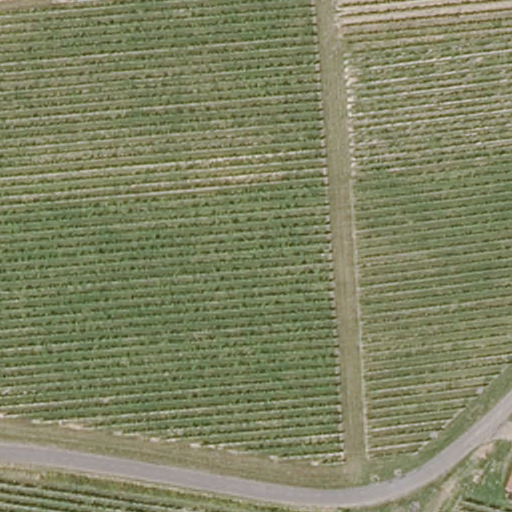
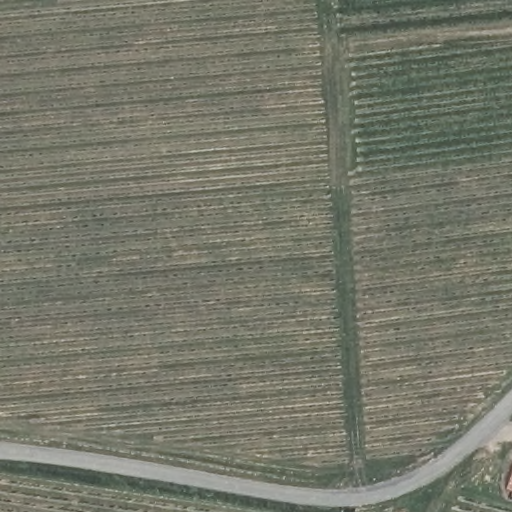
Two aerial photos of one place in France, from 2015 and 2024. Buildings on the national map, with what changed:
unchanged [(512,473),(512,493),(505,491),(512,473)]

